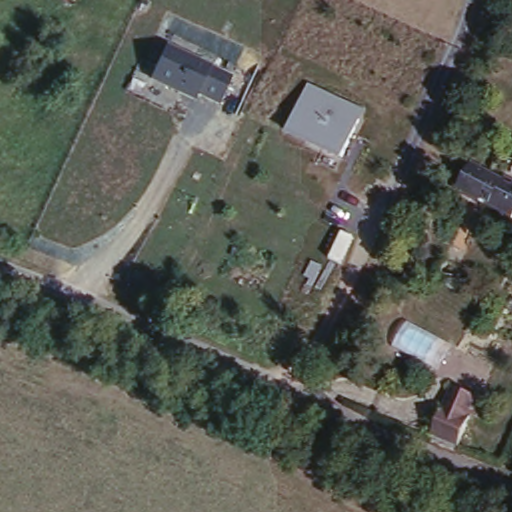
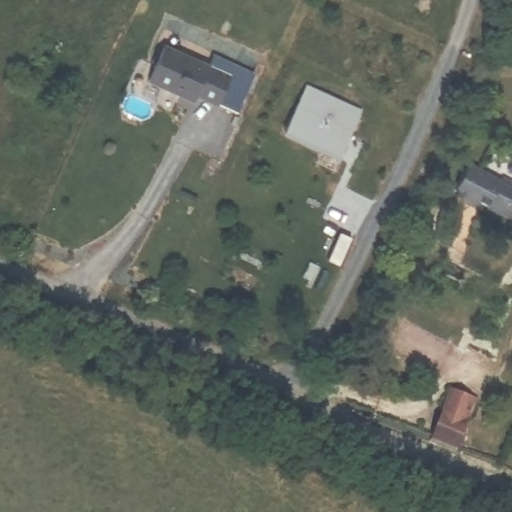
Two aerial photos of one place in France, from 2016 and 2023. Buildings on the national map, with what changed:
unchanged [(165,45),(210,66),(215,55),(257,75),(241,115),(196,96),(194,103),(148,83),(165,45)]
unchanged [(359,110),(341,155),(288,133),(306,89),(359,110)]
unchanged [(447,190),(460,164),(493,181),(496,175),(512,183),(512,221),(447,190)]
unchanged [(447,384),(475,397),(449,455),(422,442),(447,384)]

